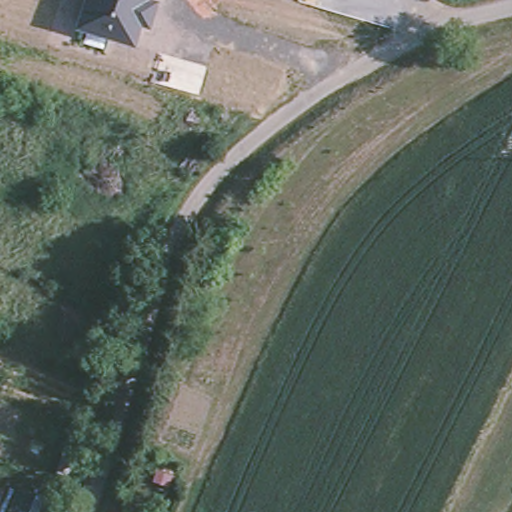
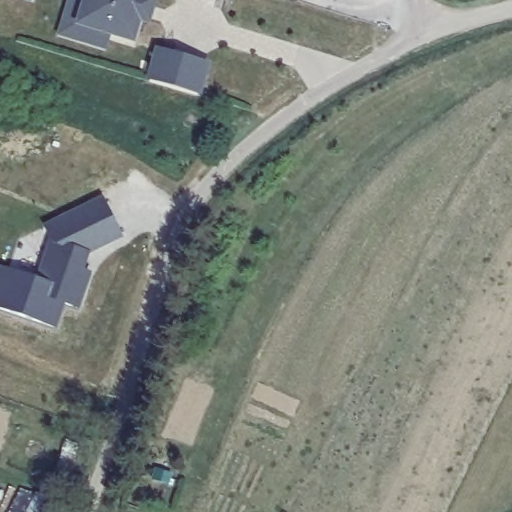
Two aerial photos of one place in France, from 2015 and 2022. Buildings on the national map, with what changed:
unchanged [(75,26),(83,0),(159,0),(151,27),(143,24),(136,45),(75,26)]
new [(201,97),(146,81),(154,49),(211,64),(201,97)]
new [(123,240),(90,254),(85,270),(92,272),(79,310),(65,305),(56,330),(0,310),(0,267),(37,279),(49,237),(43,225),(102,195),(123,240)]
unchanged [(171,475),(167,485),(153,480),(156,470),(171,475)]

